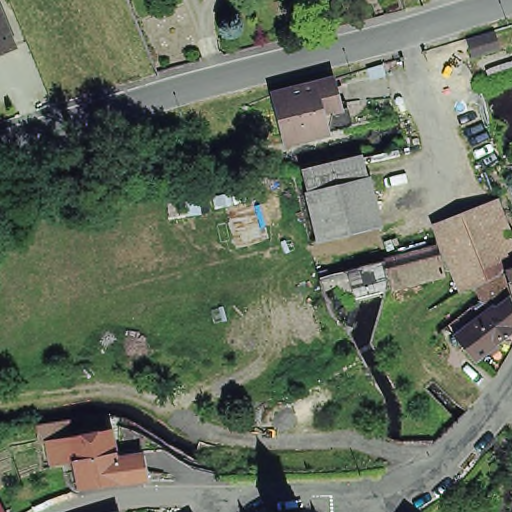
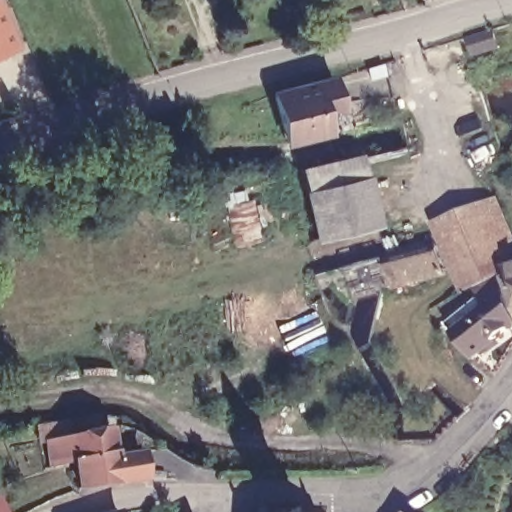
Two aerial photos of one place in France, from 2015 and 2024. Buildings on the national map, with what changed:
unchanged [(0,54),(0,8),(17,47),(0,54)]
unchanged [(471,56),(466,41),(494,33),(498,47),(471,56)]
unchanged [(345,126),(337,128),(280,143),(267,94),(325,79),(332,108),(340,106),(345,126)]
unchanged [(367,154),(382,232),(319,249),(305,168),(367,154)]
unchanged [(512,265),(465,288),(441,225),(500,202),(512,234),(512,265)]
unchanged [(383,258),(437,243),(445,271),(390,285),(383,258)]
unchanged [(387,286),(360,293),(355,294),(350,278),(337,282),(323,286),(320,274),(383,258),(390,285),(387,286)]
unchanged [(512,269),(512,278),(509,269),(512,269)]
unchanged [(497,302),(502,300),(507,297),(512,308),(512,328),(475,357),(455,333),(497,302)]
unchanged [(78,433),(43,440),(41,430),(76,423),(78,433)]
unchanged [(115,434),(122,463),(146,459),(149,481),(85,490),(81,465),(57,470),(50,444),(115,434)]
unchanged [(4,512),(0,512),(0,504),(4,512)]

